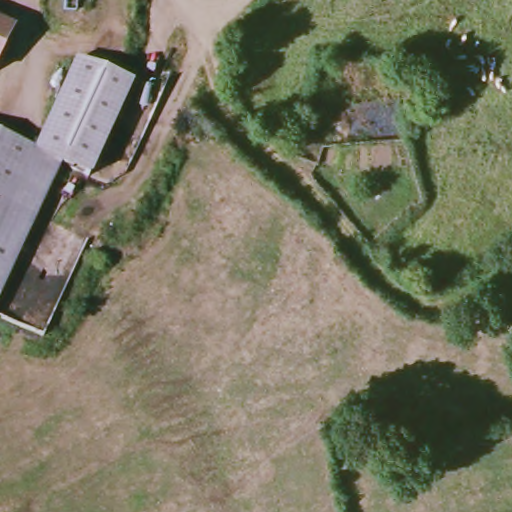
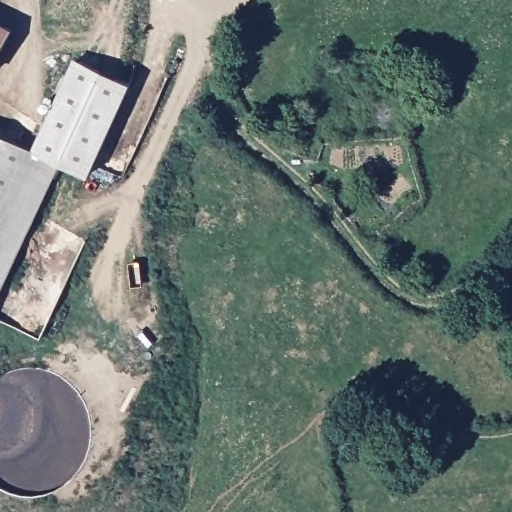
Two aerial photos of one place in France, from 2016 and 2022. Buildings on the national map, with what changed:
unchanged [(0,54),(0,25),(12,30),(0,54)]
unchanged [(76,58),(135,85),(93,182),(58,161),(0,303),(0,134),(33,150),(76,58)]

